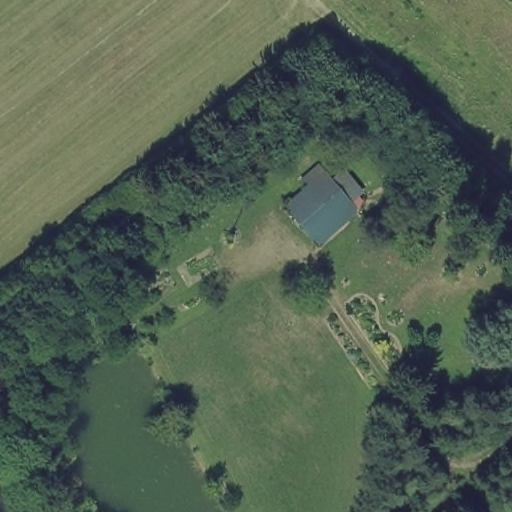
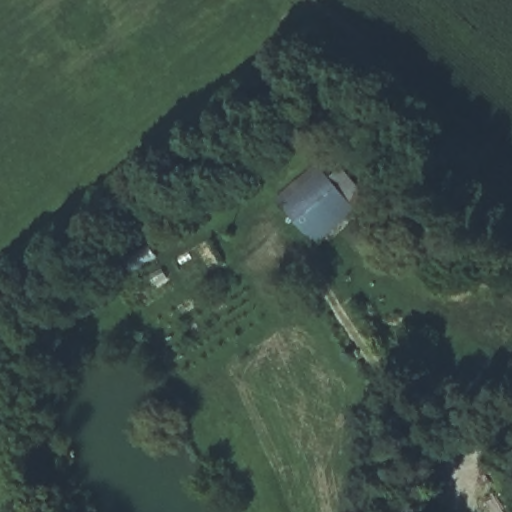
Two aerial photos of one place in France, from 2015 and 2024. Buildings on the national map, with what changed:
unchanged [(290,210),(330,175),(360,211),(316,246),(290,210)]

